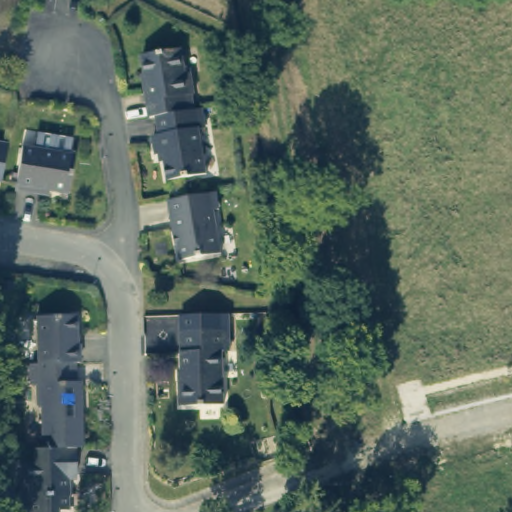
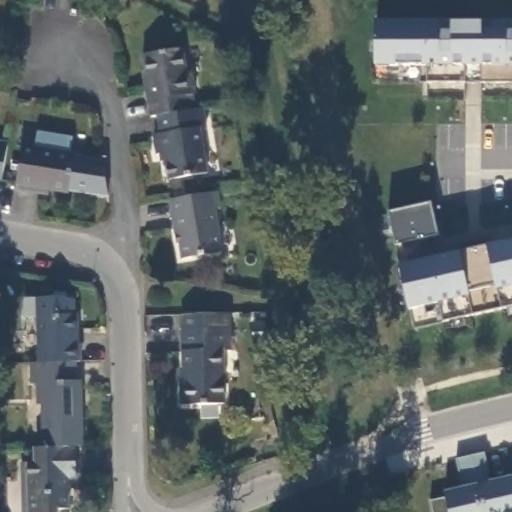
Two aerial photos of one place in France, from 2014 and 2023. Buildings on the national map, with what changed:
new [(374,23),(512,22),(512,83),(463,84),(427,85),(427,67),(377,68),(374,23)]
unchanged [(150,95),(152,94),(144,50),(184,43),(189,69),(194,68),(198,88),(195,89),(198,104),(185,106),(161,111),(153,112),(150,95)]
unchanged [(185,106),(198,104),(207,103),(210,122),(203,123),(210,168),(172,174),(167,148),(159,149),(156,131),(164,130),(161,111),(185,106)]
unchanged [(64,198),(31,192),(30,197),(11,194),(19,150),(31,152),(34,137),(69,143),(66,158),(70,159),(64,198)]
unchanged [(0,178),(0,142),(7,143),(1,178),(0,178)]
unchanged [(215,192),(218,209),(212,210),(219,252),(180,259),(176,233),(172,231),(167,200),(215,192)]
new [(387,212),(431,203),(438,238),(396,247),(387,212)]
new [(398,266),(512,241),(512,307),(445,321),(442,304),(411,311),(398,266)]
unchanged [(40,363),(39,315),(78,314),(79,344),(81,344),(82,361),(77,362),(40,363)]
unchanged [(230,328),(231,352),(224,352),(225,403),(182,404),(182,380),(184,380),(183,329),(230,328)]
unchanged [(40,363),(77,362),(78,382),(81,381),(84,446),(77,447),(57,447),(44,448),(44,404),(39,404),(39,385),(33,385),(32,363),(40,363)]
unchanged [(57,447),(77,447),(78,478),(70,478),(71,509),(59,509),(59,512),(26,512),(24,464),(38,463),(37,448),(44,448),(57,447)]
new [(430,503),(445,498),(443,491),(463,486),(456,459),(484,453),(491,480),(512,476),(512,512),(432,512),(430,503)]

